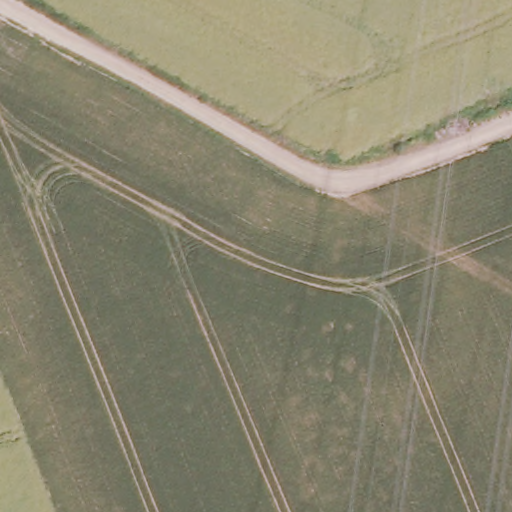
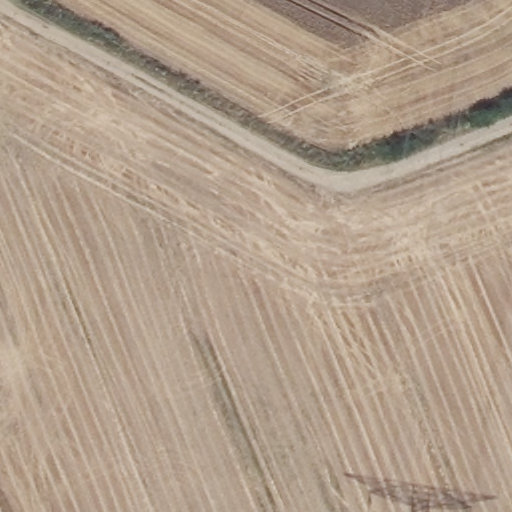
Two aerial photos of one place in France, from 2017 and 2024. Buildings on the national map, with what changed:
[]

